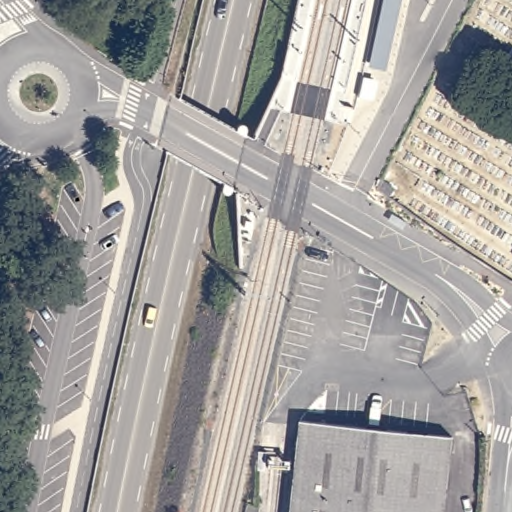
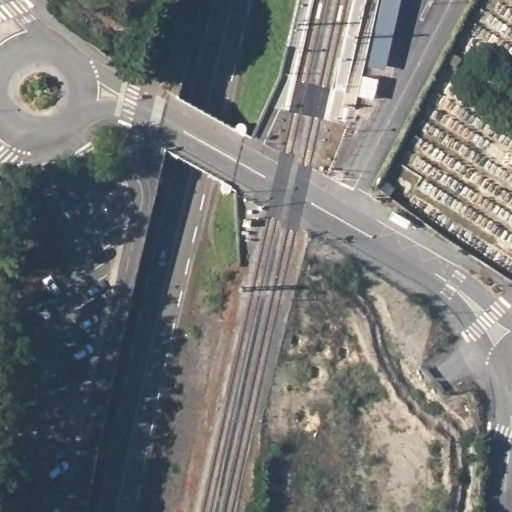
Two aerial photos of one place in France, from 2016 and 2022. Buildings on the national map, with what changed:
new [(382,0),(401,0),(385,71),(367,67),(382,0)]
demolished [(451,434),(443,512),(290,512),(300,418),(451,434)]
unchanged [(266,450),(265,467),(257,467),(259,448),(266,450)]

